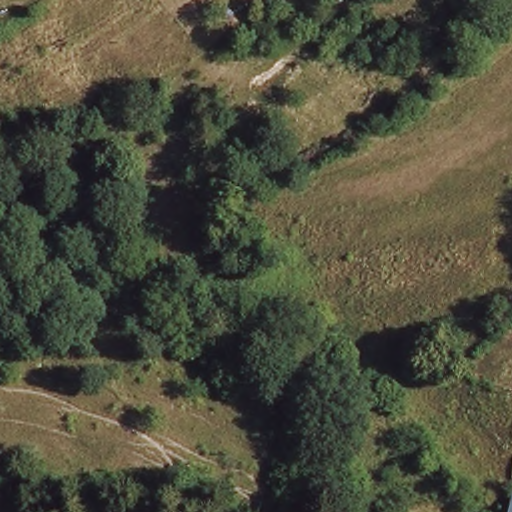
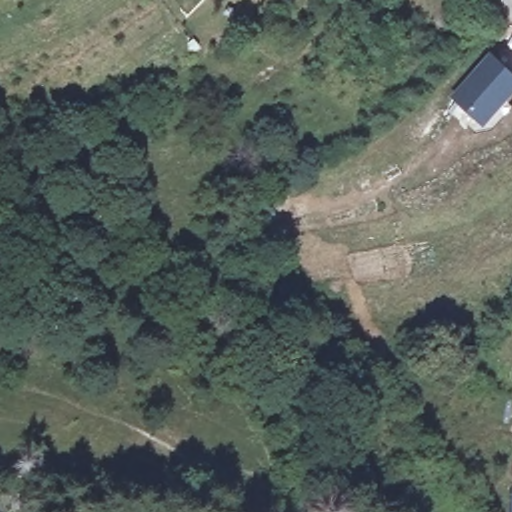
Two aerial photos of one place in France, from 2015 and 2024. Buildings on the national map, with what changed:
new [(512,71),(512,97),(486,126),(451,96),(490,50),(512,71)]

